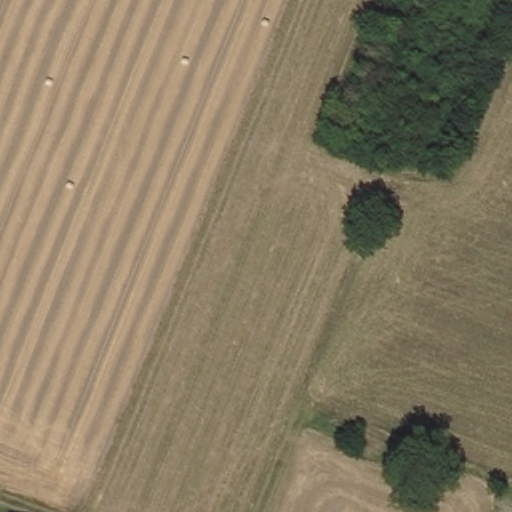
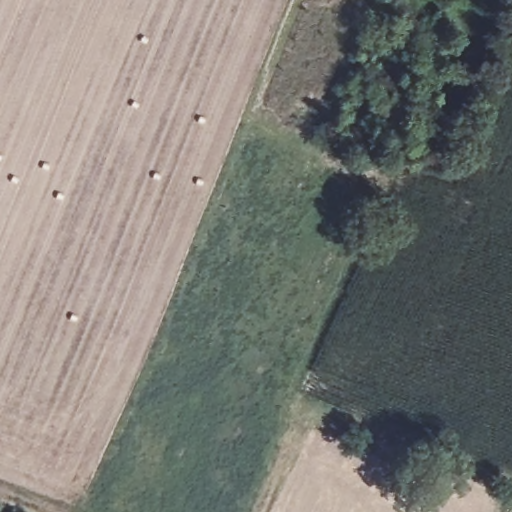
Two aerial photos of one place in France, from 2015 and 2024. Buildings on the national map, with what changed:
[]

